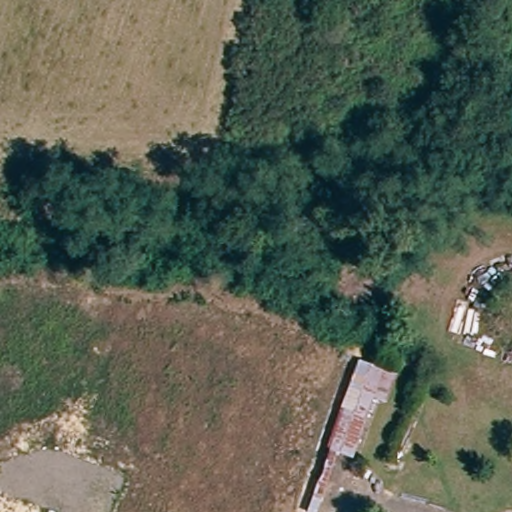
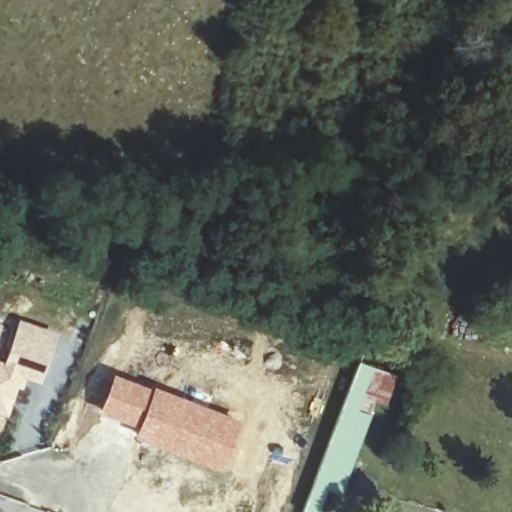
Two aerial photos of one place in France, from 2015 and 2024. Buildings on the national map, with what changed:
new [(0,360),(4,362),(20,321),(58,333),(40,385),(27,380),(23,390),(18,388),(9,416),(0,414),(0,360)]
new [(0,329),(0,323),(2,323),(0,329)]
new [(361,365),(390,375),(400,377),(391,402),(381,398),(349,491),(334,486),(326,512),(311,512),(337,435),(350,395),(361,365)]
new [(113,372),(152,385),(136,428),(97,412),(113,372)]
new [(136,428),(152,385),(241,419),(217,471),(132,438),(136,428)]

